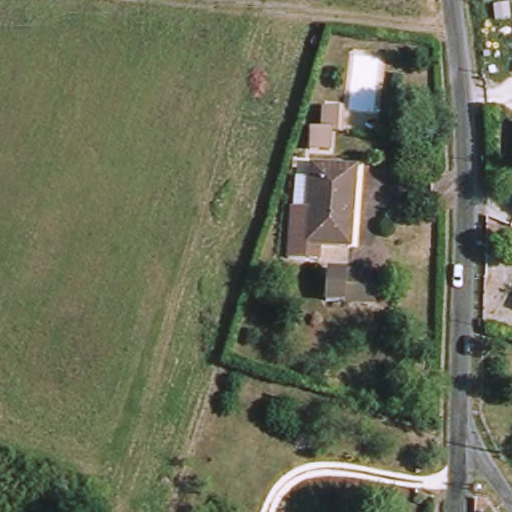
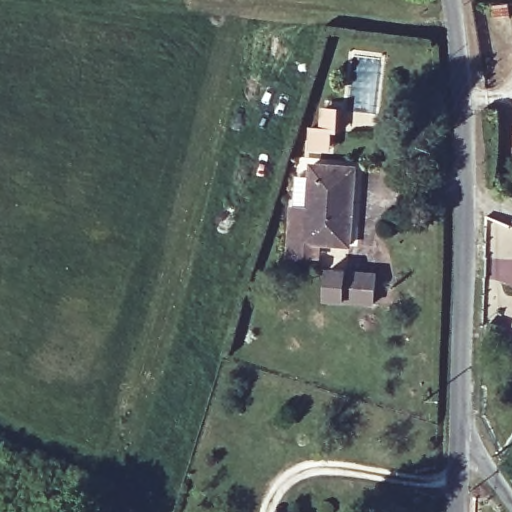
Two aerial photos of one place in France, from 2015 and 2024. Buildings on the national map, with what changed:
unchanged [(321,129),(325,106),(341,108),(339,131),(321,129)]
unchanged [(314,257),(296,255),(298,205),(303,203),(305,173),(318,175),(318,169),(361,172),(355,244),(329,241),(328,258),(314,257)]
unchanged [(384,275),(381,306),(333,302),(336,271),(384,275)]

